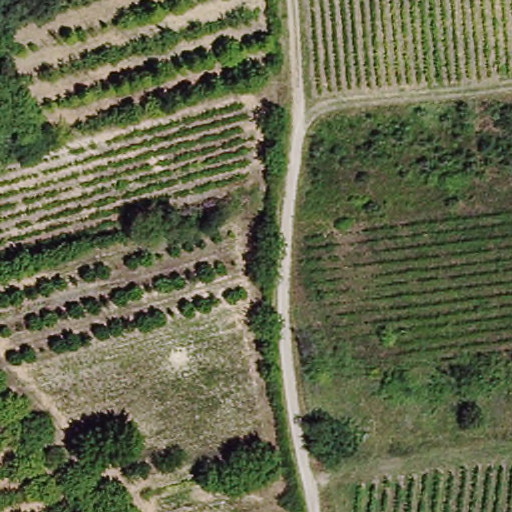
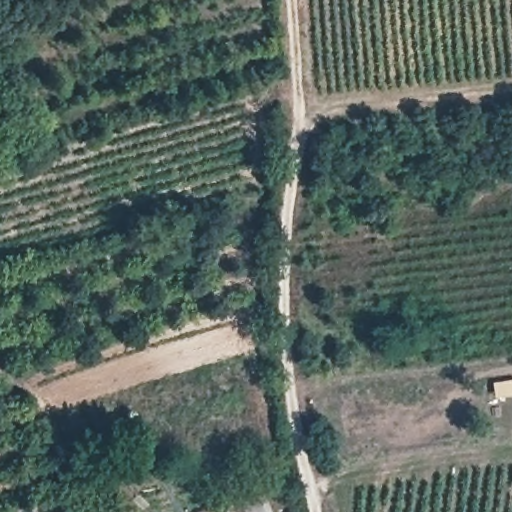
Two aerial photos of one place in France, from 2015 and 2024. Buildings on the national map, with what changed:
[]

